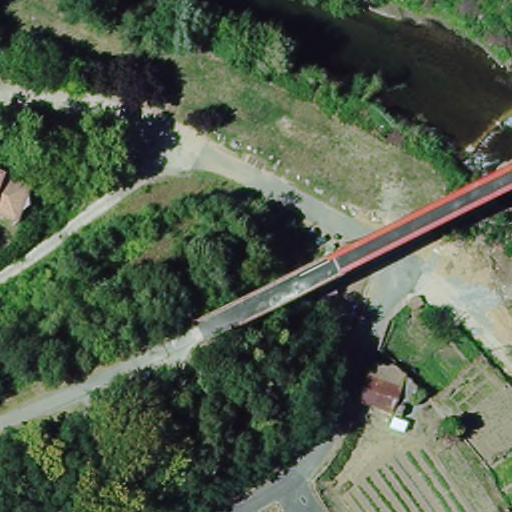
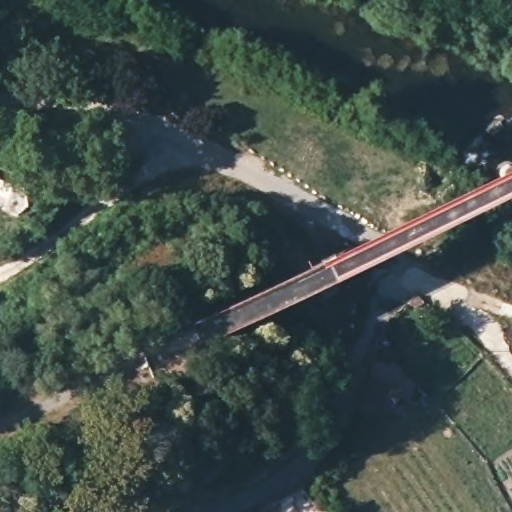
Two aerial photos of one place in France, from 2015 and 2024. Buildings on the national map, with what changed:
unchanged [(0,211),(0,170),(33,185),(18,217),(0,211)]
unchanged [(379,369),(392,369),(392,384),(407,385),(407,394),(415,394),(415,409),(371,409),(373,383),(379,369)]

